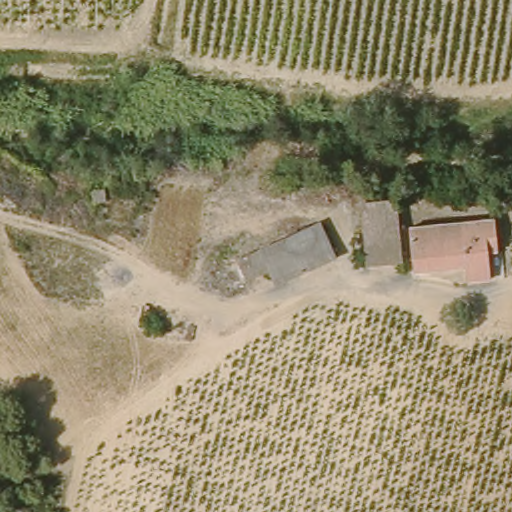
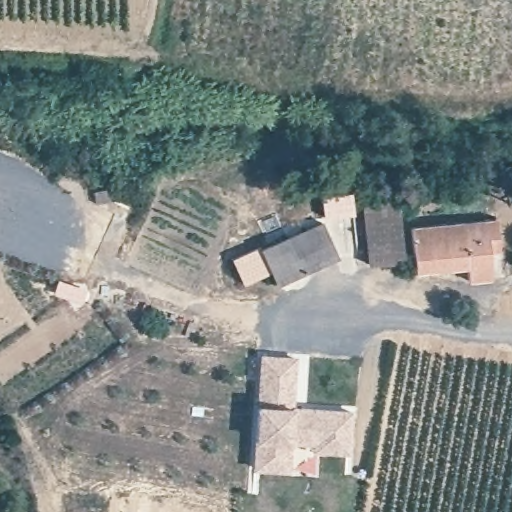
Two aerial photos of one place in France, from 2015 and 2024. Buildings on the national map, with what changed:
unchanged [(364,253),(366,194),(400,195),(398,254),(364,253)]
unchanged [(327,216),(347,260),(271,286),(254,248),(327,216)]
unchanged [(492,225),(492,245),(491,259),(480,259),(480,286),(460,285),(459,269),(408,268),(410,222),(492,225)]
new [(296,359),(292,404),(352,408),(349,453),(314,451),(314,447),(291,446),(290,472),(255,469),(256,439),(258,403),(261,357),(296,359)]

